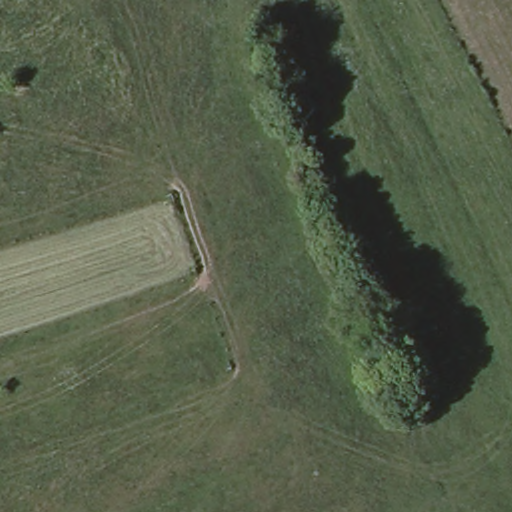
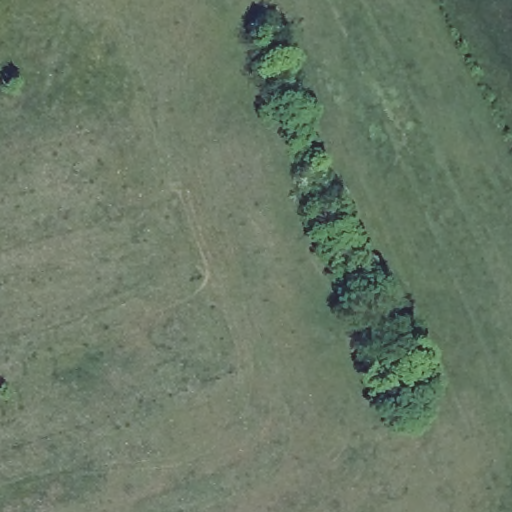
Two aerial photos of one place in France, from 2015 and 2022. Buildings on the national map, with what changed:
[]

